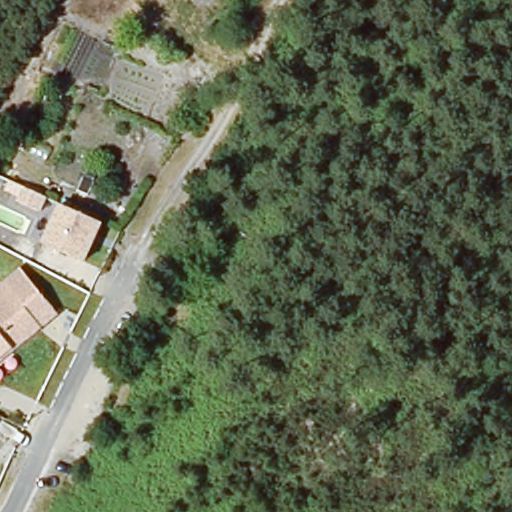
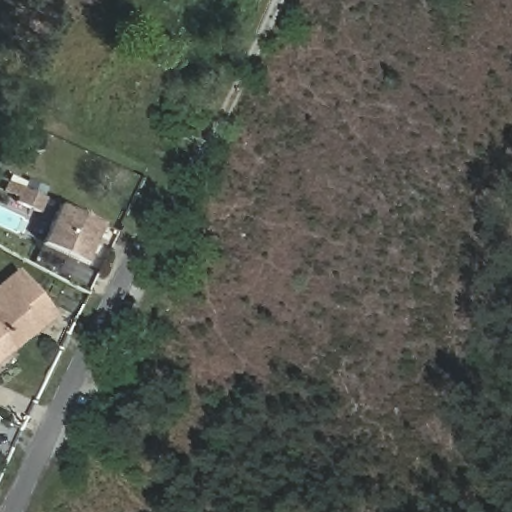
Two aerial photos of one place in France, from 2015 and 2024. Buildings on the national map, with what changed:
unchanged [(15,204),(23,186),(50,197),(43,214),(15,204)]
unchanged [(59,204),(104,224),(86,263),(40,243),(59,204)]
unchanged [(0,302),(0,282),(20,266),(59,312),(38,328),(11,294),(0,302)]
unchanged [(38,328),(0,358),(0,302),(11,294),(38,328)]

